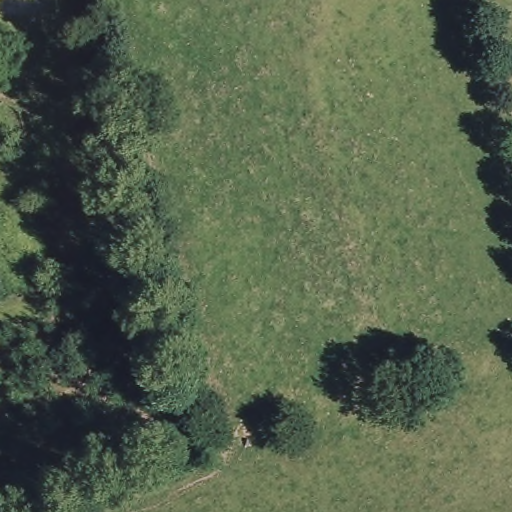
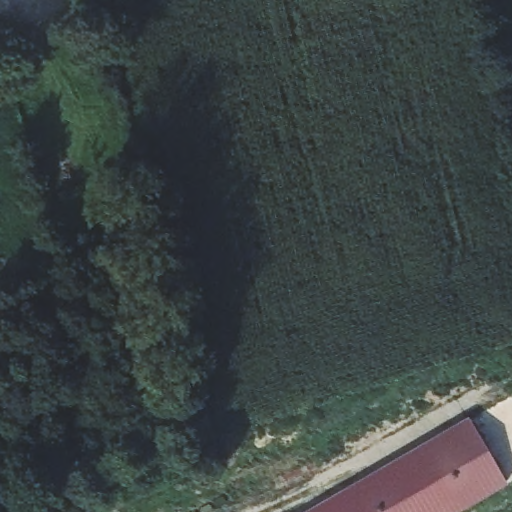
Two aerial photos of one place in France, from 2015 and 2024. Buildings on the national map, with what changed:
new [(305,512),(470,418),(509,486),(463,512),(305,512)]

